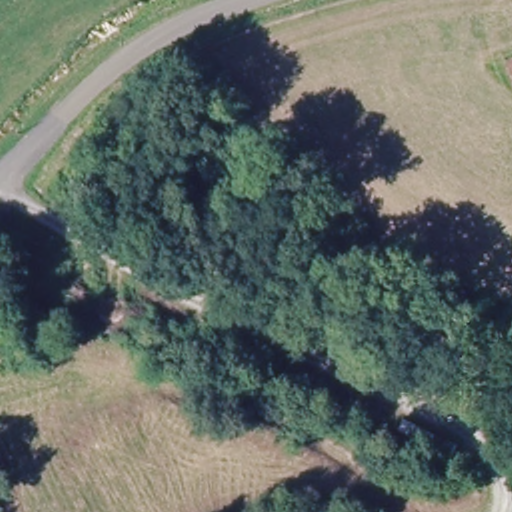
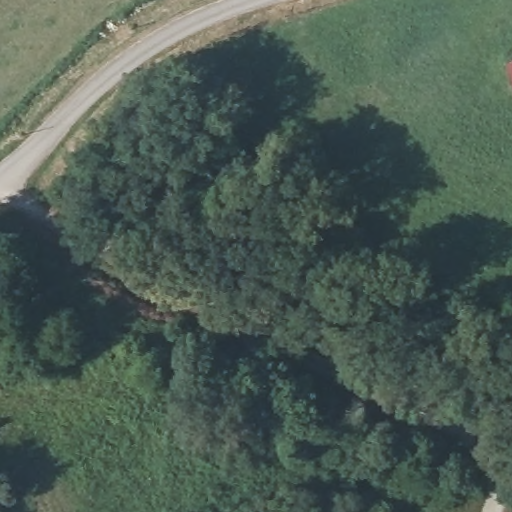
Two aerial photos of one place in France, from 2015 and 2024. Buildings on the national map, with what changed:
unchanged [(512,57),(512,65),(509,58),(512,57)]

